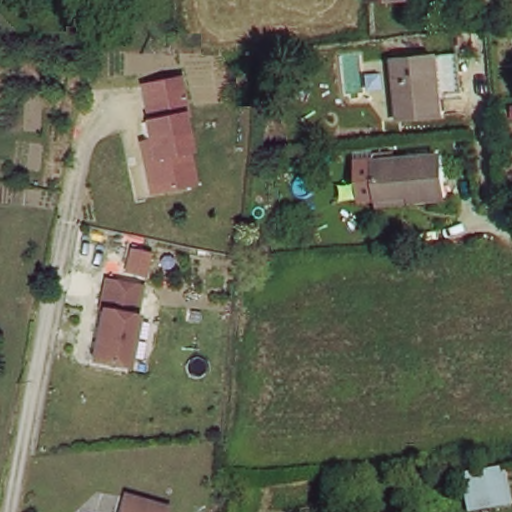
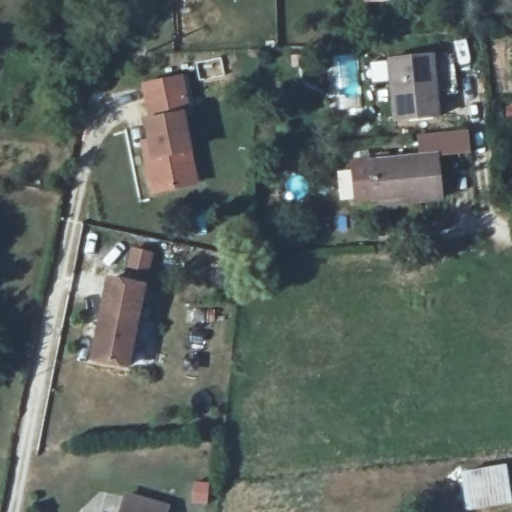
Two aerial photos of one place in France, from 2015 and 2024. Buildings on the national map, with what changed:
unchanged [(391,60),(433,57),(439,117),(396,120),(391,60)]
unchanged [(184,185),(153,191),(146,159),(143,142),(149,141),(145,122),(151,120),(143,85),(179,78),(186,114),(181,115),(188,150),(194,183),(184,185)]
unchanged [(371,194),(371,191),(353,193),(353,192),(350,162),(368,160),(368,159),(433,153),(437,195),(404,197),(372,200),(371,194)]
unchanged [(138,282),(123,362),(88,355),(103,275),(138,282)]
unchanged [(460,475),(508,464),(512,491),(512,503),(507,504),(508,512),(487,512),(486,507),(466,510),(460,475)]
unchanged [(124,495),(166,506),(165,512),(120,512),(124,495)]

